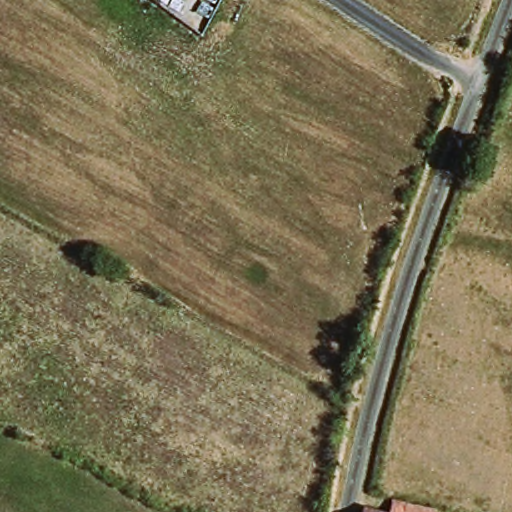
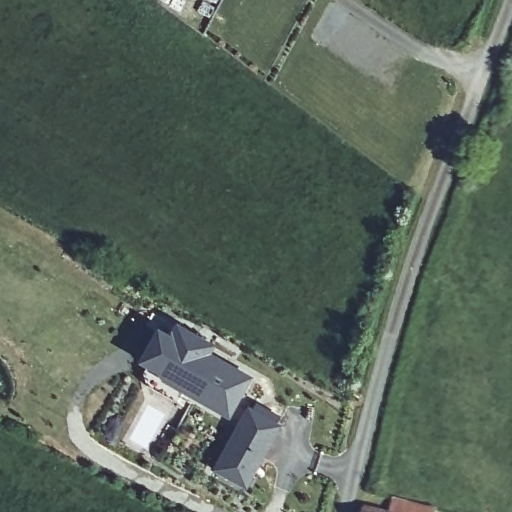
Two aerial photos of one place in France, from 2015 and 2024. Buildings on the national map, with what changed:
new [(155,332),(167,339),(175,327),(202,342),(197,351),(246,378),(225,415),(178,390),(180,387),(136,363),(155,332)]
new [(247,411),(276,427),(243,487),(214,471),(247,411)]
unchanged [(393,512),(364,512),(365,504),(393,512)]

